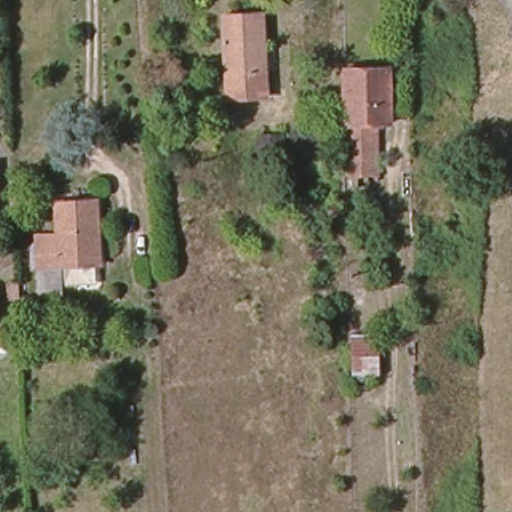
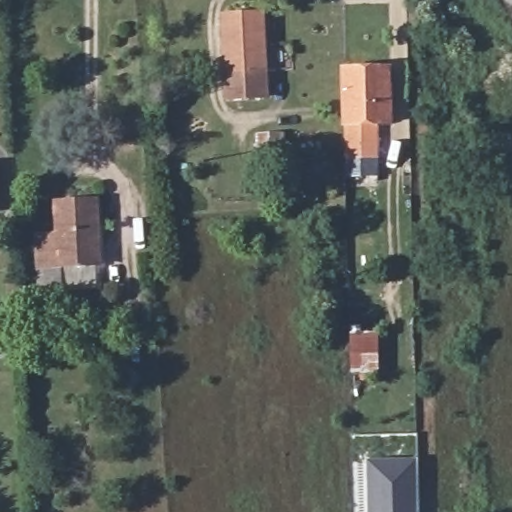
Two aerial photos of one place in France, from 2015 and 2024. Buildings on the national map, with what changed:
unchanged [(222,15),(264,14),(267,101),(225,101),(222,15)]
unchanged [(348,175),(346,64),(392,63),(392,120),(374,121),(376,175),(376,190),(349,190),(348,175)]
unchanged [(258,163),(259,139),(280,139),(281,165),(258,163)]
unchanged [(0,208),(0,171),(1,208),(0,208)]
unchanged [(96,265),(57,267),(57,293),(38,294),(37,233),(56,234),(56,201),(97,200),(96,265)]
unchanged [(10,279),(19,279),(20,299),(12,299),(10,279)]
unchanged [(384,378),(368,378),(370,393),(355,394),(354,336),(379,334),(384,378)]
new [(420,512),(369,512),(369,459),(419,458),(420,512)]

